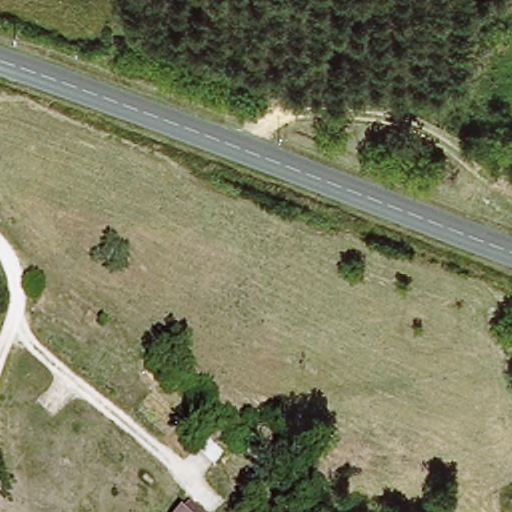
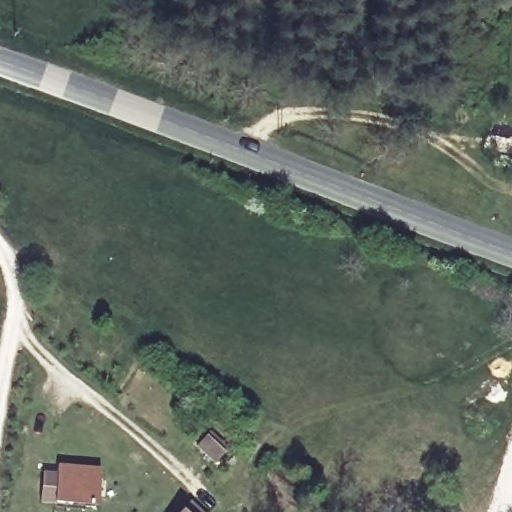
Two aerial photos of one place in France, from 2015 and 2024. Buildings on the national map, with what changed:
new [(46,471),(60,471),(60,462),(103,464),(101,503),(44,500),(45,476),(46,471)]
new [(186,506),(194,512),(181,512),(186,506)]

